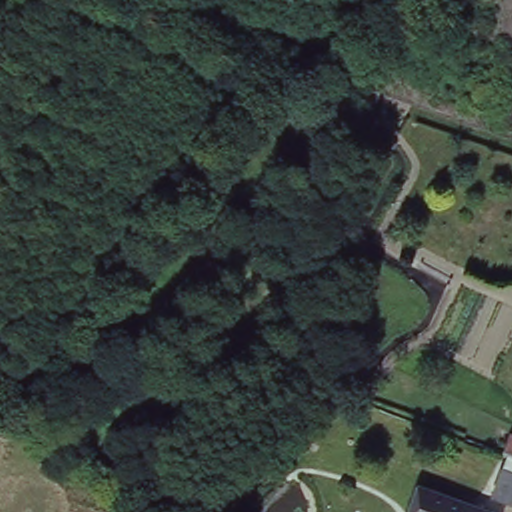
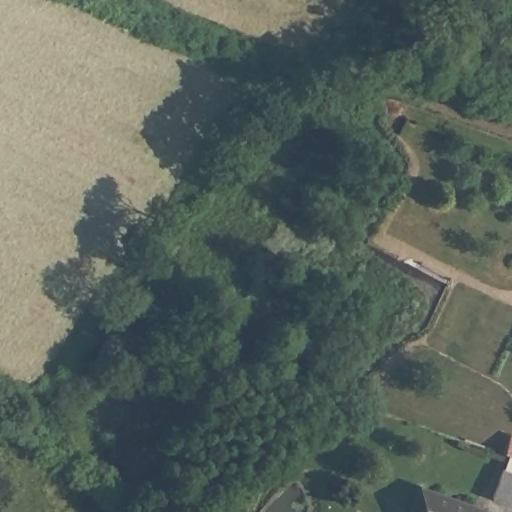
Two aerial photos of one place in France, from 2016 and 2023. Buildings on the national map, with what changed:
unchanged [(420,263),(449,280),(444,287),(443,286),(416,270),(420,263)]
unchanged [(490,498),(494,485),(499,471),(504,455),(500,454),(504,442),(499,440),(501,433),(512,437),(512,506),(490,498)]
unchanged [(416,490),(428,493),(481,512),(408,512),(416,490)]

